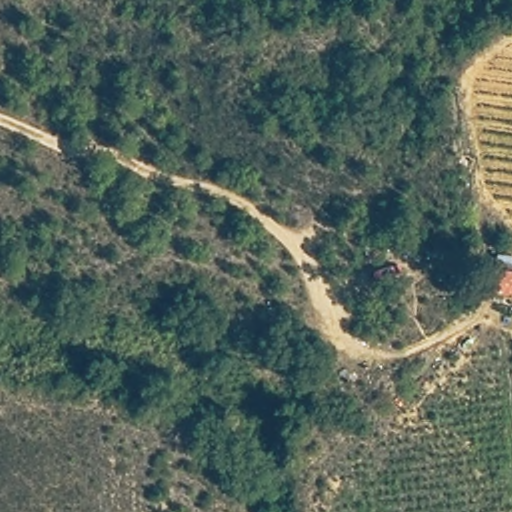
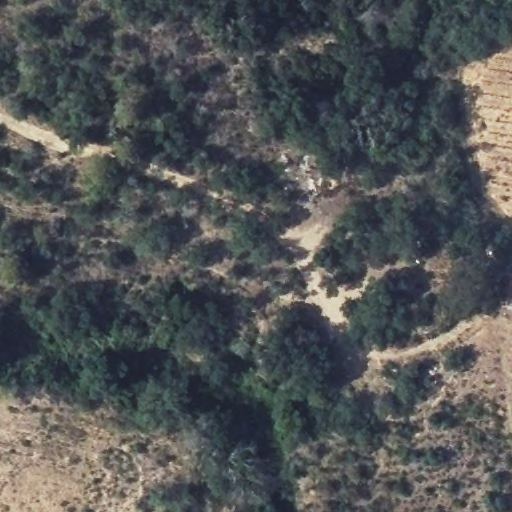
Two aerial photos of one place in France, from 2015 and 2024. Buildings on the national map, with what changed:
unchanged [(490,269),(512,270),(512,300),(489,299),(490,269)]

